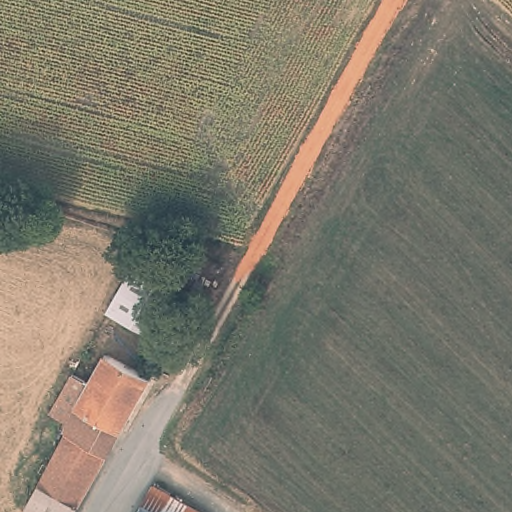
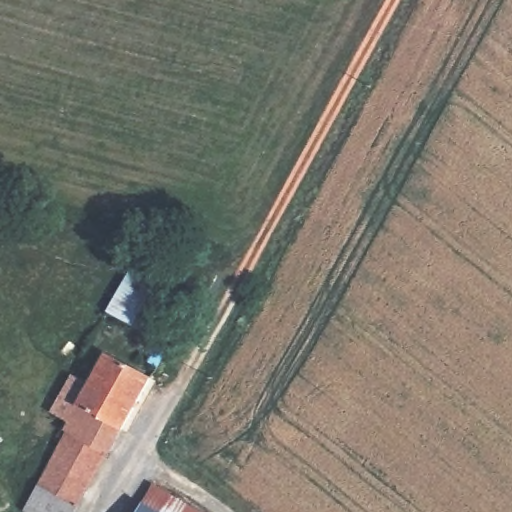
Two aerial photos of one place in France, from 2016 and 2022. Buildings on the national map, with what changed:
unchanged [(137,255),(181,277),(149,330),(104,305),(137,255)]
unchanged [(30,497),(81,404),(80,399),(106,351),(150,375),(149,380),(74,512),(58,512),(30,497)]
unchanged [(153,479),(207,512),(134,512),(153,479)]
unchanged [(30,497),(58,512),(22,512),(30,497)]

